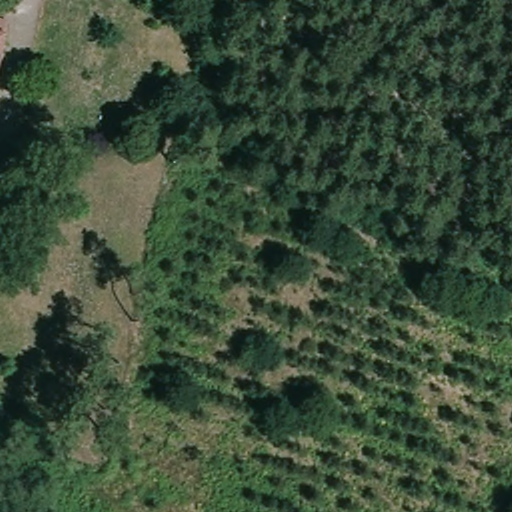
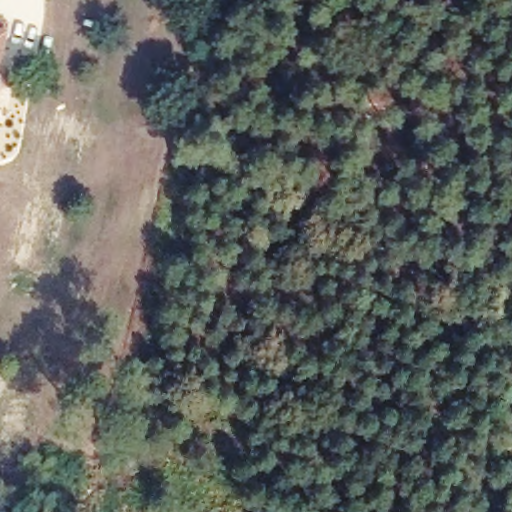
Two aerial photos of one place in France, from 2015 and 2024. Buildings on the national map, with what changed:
unchanged [(0,18),(18,22),(0,108),(0,18)]

